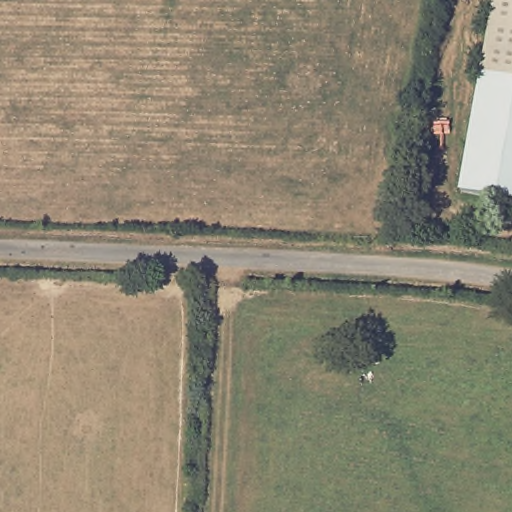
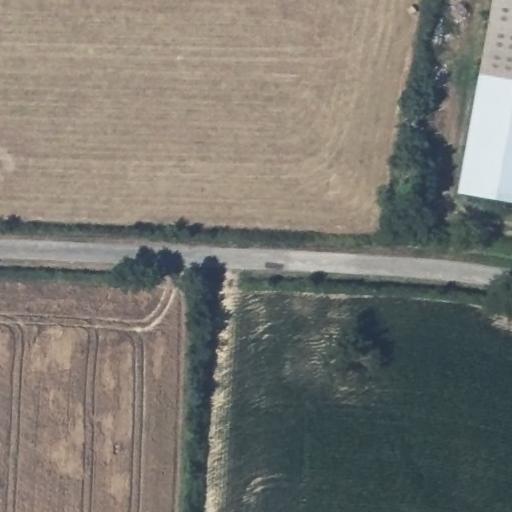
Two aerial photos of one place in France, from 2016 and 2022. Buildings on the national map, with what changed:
unchanged [(493,0),(512,0),(512,78),(482,73),(493,0)]
unchanged [(464,191),(482,73),(512,78),(512,199),(464,191)]

